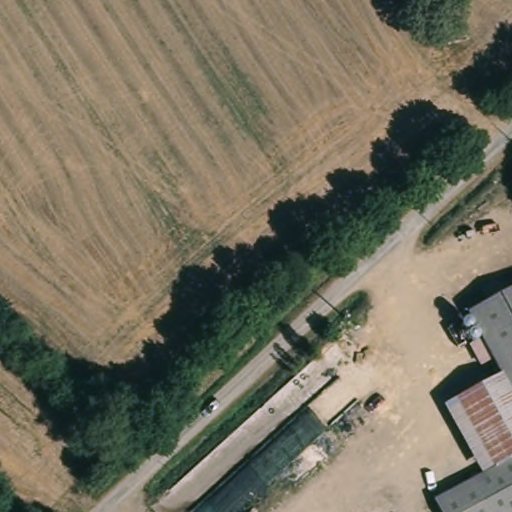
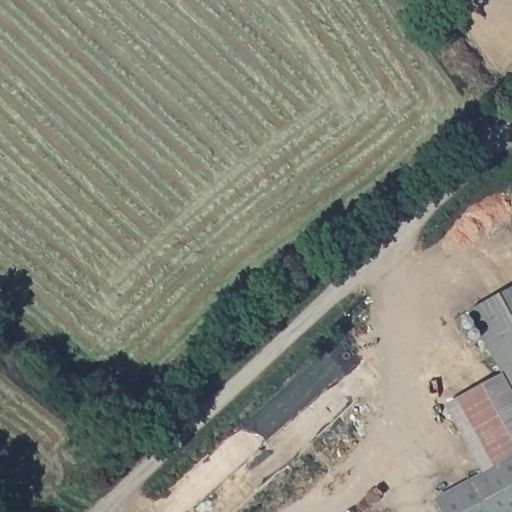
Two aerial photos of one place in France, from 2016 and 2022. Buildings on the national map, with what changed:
unchanged [(512,290),(512,388),(471,313),(512,290)]
unchanged [(502,371),(512,388),(512,462),(482,478),(442,407),(502,371)]
unchanged [(438,503),(512,462),(512,512),(443,512),(438,503)]

